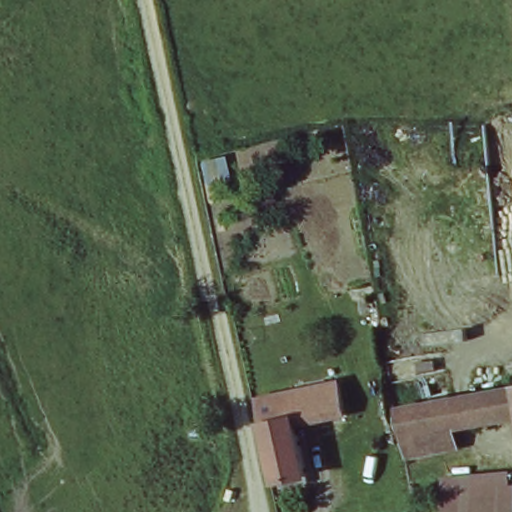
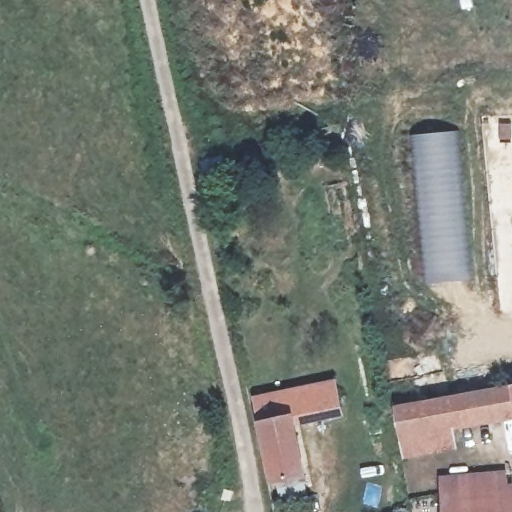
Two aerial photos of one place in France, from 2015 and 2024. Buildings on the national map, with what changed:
new [(412,136),(456,132),(469,280),(426,283),(412,136)]
unchanged [(342,413),(293,425),(305,485),(277,490),(268,447),(263,448),(253,401),(335,382),(342,413)]
unchanged [(512,391),(512,418),(456,428),(460,450),(409,460),(399,411),(512,391)]
unchanged [(445,512),(443,480),(512,474),(512,512),(445,512)]

